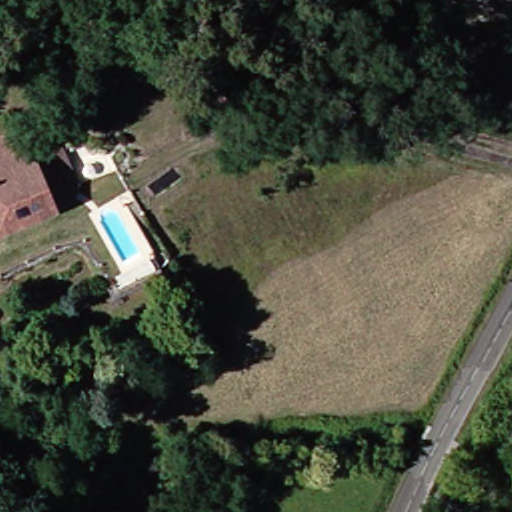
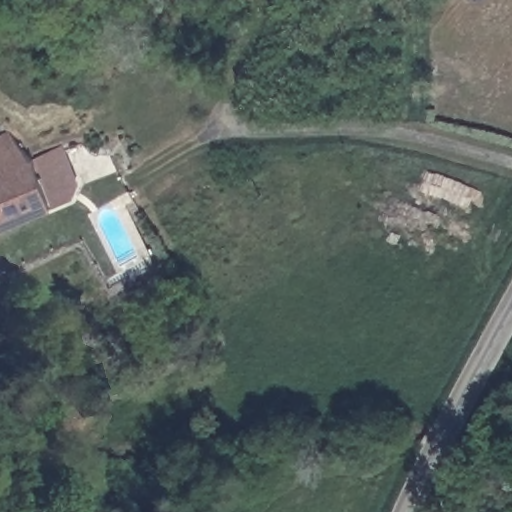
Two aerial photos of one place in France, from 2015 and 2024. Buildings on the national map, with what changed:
unchanged [(0,231),(0,143),(9,140),(38,154),(61,204),(0,231)]
unchanged [(38,154),(67,142),(84,178),(78,196),(61,204),(38,154)]

